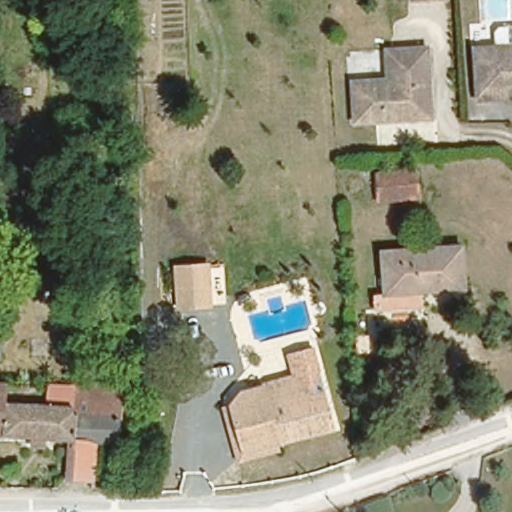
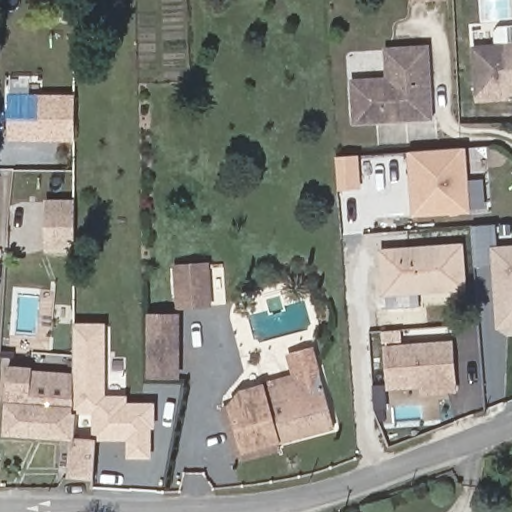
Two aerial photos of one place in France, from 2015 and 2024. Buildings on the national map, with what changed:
unchanged [(353,115),(352,76),(383,74),(382,43),(424,40),(428,110),(396,113),(395,107),(385,108),(385,114),(353,115)]
unchanged [(499,81),(472,83),(470,45),(512,42),(512,86),(499,86),(499,81)]
new [(6,141),(6,93),(74,93),(74,141),(6,141)]
demolished [(179,129),(182,164),(157,165),(155,131),(179,129)]
new [(467,146),(470,213),(411,217),(406,151),(467,146)]
new [(46,199),(74,199),(74,234),(46,234),(46,199)]
unchanged [(379,292),(377,247),(455,240),(458,285),(379,292)]
new [(512,327),(495,328),(492,247),(512,246),(512,327)]
new [(176,308),(173,263),(209,260),(212,306),(176,308)]
new [(180,374),(147,375),(146,313),(179,313),(180,374)]
new [(2,434),(3,401),(6,366),(31,366),(32,370),(73,372),(72,323),(105,324),(106,394),(126,394),(126,402),(154,402),(155,429),(151,429),(150,459),(127,458),(126,441),(96,442),(94,479),(67,477),(67,439),(2,434)]
new [(390,394),(383,344),(451,339),(457,391),(390,394)]
unchanged [(275,446),(256,452),(240,457),(224,402),(231,400),(242,387),(260,381),(297,370),(290,349),(312,342),(336,420),(302,429),(304,437),(275,446)]
demolished [(69,434),(69,386),(69,382),(87,381),(87,394),(120,394),(117,412),(116,437),(91,436),(69,434)]
demolished [(0,431),(0,383),(69,386),(69,434),(0,431)]
demolished [(91,486),(68,486),(69,434),(91,436),(91,486)]

